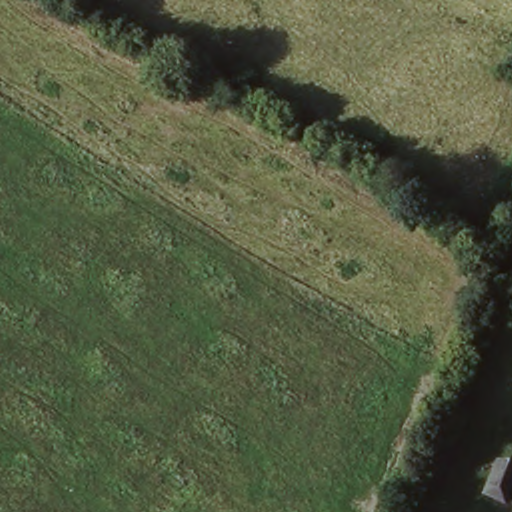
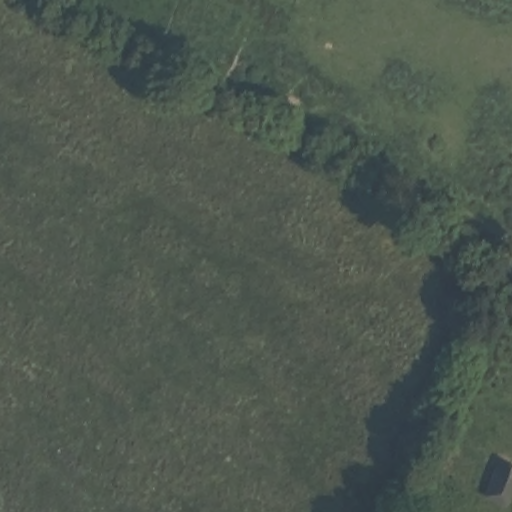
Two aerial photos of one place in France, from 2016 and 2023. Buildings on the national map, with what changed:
unchanged [(512,487),(503,503),(485,492),(500,466),(512,471),(512,487)]

